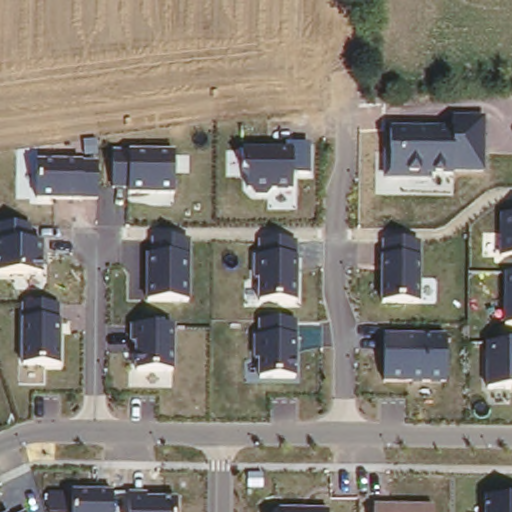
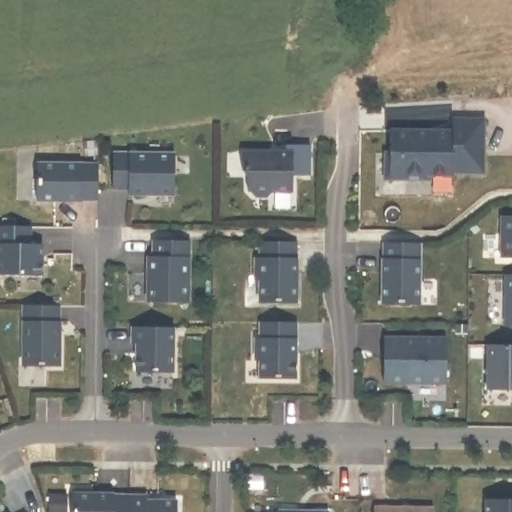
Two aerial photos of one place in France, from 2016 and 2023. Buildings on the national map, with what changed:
unchanged [(434,176),(434,182),(384,182),(386,127),(451,127),(451,119),(484,120),(484,175),(434,176)]
unchanged [(247,190),(247,176),(242,176),(242,149),(284,147),(284,142),(311,144),(311,176),(292,175),(292,192),(271,191),(267,198),(256,197),(247,190)]
unchanged [(127,195),(127,189),(112,187),(112,150),(173,154),(173,196),(127,195)]
unchanged [(35,200),(36,161),(98,164),(97,203),(35,200)]
unchanged [(512,215),(512,258),(500,258),(501,215),(512,215)]
unchanged [(32,227),(32,240),(44,240),(43,276),(0,274),(0,225),(32,227)]
unchanged [(149,251),(152,250),(152,237),(190,240),(190,302),(147,300),(149,251)]
unchanged [(258,280),(251,280),(251,253),(260,252),(260,240),(296,240),(296,300),(258,300),(258,280)]
unchanged [(382,241),(420,242),(421,304),(381,302),(382,241)]
unchanged [(512,273),(512,326),(502,326),(503,272),(512,273)]
unchanged [(23,305),(60,305),(60,366),(22,365),(23,305)]
unchanged [(260,360),(253,360),(254,335),(260,333),(260,320),(297,321),(296,380),(261,377),(260,360)]
unchanged [(134,345),(130,345),(131,325),(175,326),(174,372),(135,372),(134,345)]
unchanged [(383,334),(445,336),(445,386),(384,385),(383,334)]
unchanged [(512,345),(512,385),(508,385),(508,389),(486,389),(487,344),(512,345)]
unchanged [(47,492),(148,493),(148,498),(177,500),(177,512),(47,512),(47,492)]
unchanged [(512,497),(512,512),(482,512),(482,496),(512,497)]
unchanged [(373,505),(433,505),(433,512),(373,512),(373,505)]
unchanged [(279,508),(329,510),(329,512),(275,512),(279,508)]

